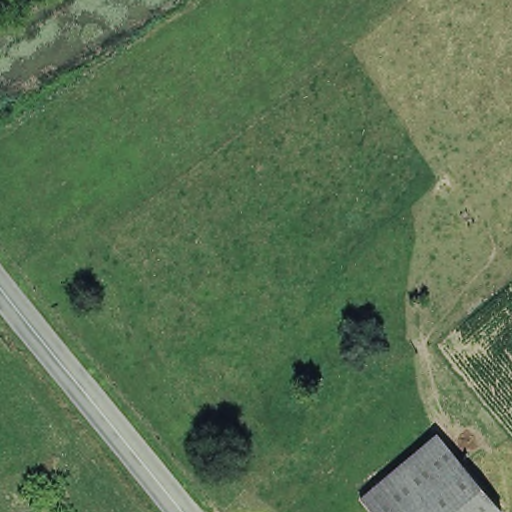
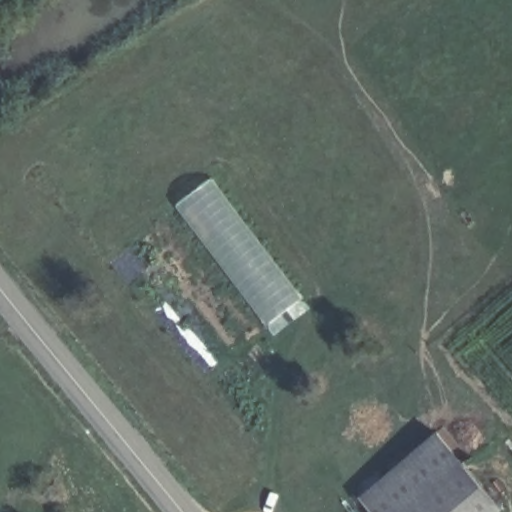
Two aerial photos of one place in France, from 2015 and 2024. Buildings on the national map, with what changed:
new [(311,299),(272,336),(168,215),(206,179),(311,299)]
unchanged [(366,501),(443,435),(452,446),(374,511),(366,501)]
unchanged [(452,446),(470,467),(463,473),(416,512),(374,512),(374,511),(452,446)]
unchanged [(463,473),(470,467),(483,481),(488,487),(507,509),(505,512),(416,512),(463,473)]

